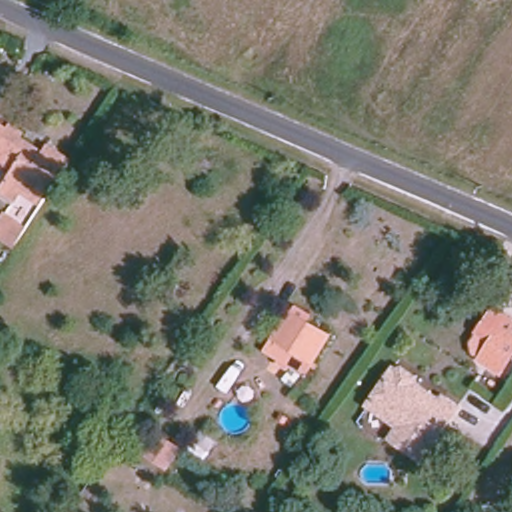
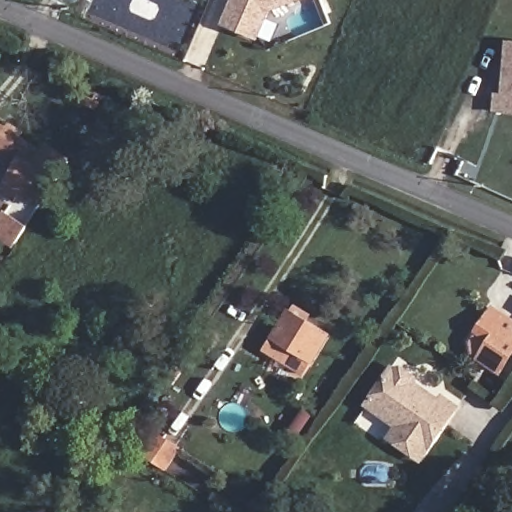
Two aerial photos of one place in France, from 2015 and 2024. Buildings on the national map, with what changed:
new [(259,41),(221,25),(232,0),(303,0),(272,13),(259,41)]
new [(495,92),(502,93),(507,40),(512,40),(512,114),(493,112),(495,92)]
unchanged [(0,190),(0,188),(8,177),(13,167),(0,160),(0,122),(44,149),(49,143),(77,161),(49,204),(26,189),(17,201),(0,190)]
unchanged [(12,246),(0,239),(0,216),(2,214),(23,229),(12,246)]
unchanged [(331,333),(303,374),(265,346),(291,308),(331,333)]
unchanged [(512,363),(501,378),(481,363),(494,346),(480,335),(497,309),(512,319),(512,363)]
unchanged [(374,400),(396,368),(436,399),(440,392),(459,406),(424,459),(391,436),(363,415),(374,400)]
unchanged [(164,436),(180,446),(164,467),(148,456),(164,436)]
unchanged [(503,512),(481,512),(488,501),(503,512)]

